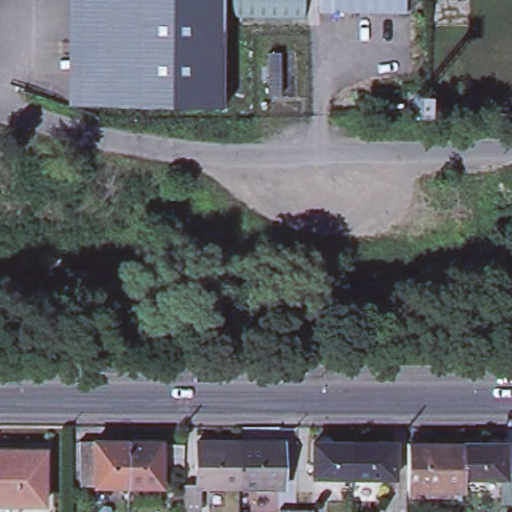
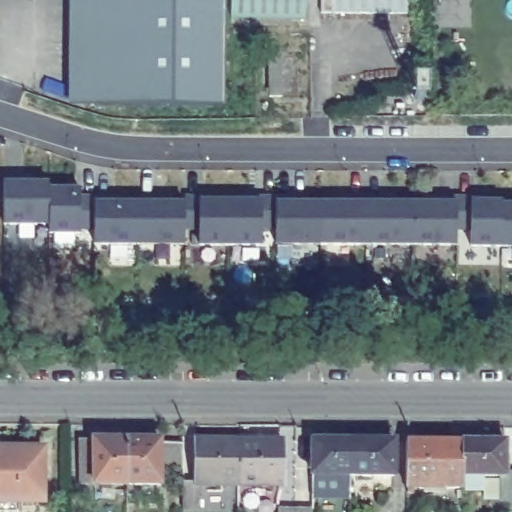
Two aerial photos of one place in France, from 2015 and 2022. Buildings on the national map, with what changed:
unchanged [(70,104),(70,0),(114,0),(113,105),(70,104)]
unchanged [(113,105),(114,0),(221,0),(221,106),(113,105)]
new [(305,0),(305,18),(221,18),(221,0),(305,0)]
new [(407,0),(407,14),(322,14),(322,0),(407,0)]
new [(377,30),(393,31),(393,19),(408,19),(408,32),(408,70),(377,70),(377,30)]
unchanged [(276,64),(288,65),(288,107),(276,107),(276,64)]
new [(17,189),(48,189),(48,195),(78,195),(79,202),(109,203),(110,207),(138,206),(138,202),(152,202),(152,207),(183,207),(183,201),(197,201),(198,206),(260,205),(260,202),(288,202),(288,207),(348,207),(348,201),(379,201),(379,209),(440,207),(440,202),(471,202),(471,206),(500,206),(500,210),(512,209),(512,249),(469,249),(468,235),(456,235),(455,250),(273,247),(273,234),(261,235),(261,249),(198,249),(197,233),(184,232),(184,249),(93,246),(93,232),(81,234),(80,237),(48,237),(48,229),(2,229),(2,181),(17,182),(17,189)]
unchanged [(311,473),(312,438),(314,434),(330,434),(332,440),(347,440),(347,473),(311,473)]
unchanged [(394,440),(393,475),(347,473),(347,440),(372,440),(376,436),(383,436),(386,440),(394,440)]
unchanged [(505,474),(460,475),(460,447),(460,440),(485,440),(488,437),(500,436),(501,440),(507,440),(505,471),(512,471),(512,502),(505,502),(505,474)]
unchanged [(190,481),(192,437),(230,437),(230,481),(190,481)]
unchanged [(275,481),(230,481),(230,437),(276,437),(275,481)]
unchanged [(77,442),(92,442),(98,442),(101,438),(111,438),(112,443),(123,443),(123,486),(92,485),(78,485),(77,442)]
unchanged [(160,443),(159,486),(123,486),(123,443),(140,443),(142,439),(150,438),(153,443),(160,443)]
unchanged [(413,487),(412,492),(407,492),(406,487),(403,487),(403,455),(403,440),(460,440),(460,447),(460,475),(460,487),(413,487)]
unchanged [(45,443),(45,495),(24,495),(23,505),(0,504),(0,441),(45,443)]
unchanged [(180,446),(180,472),(166,473),(165,446),(180,446)]

